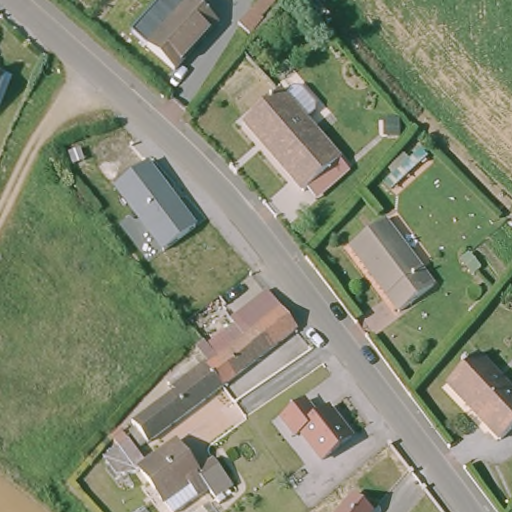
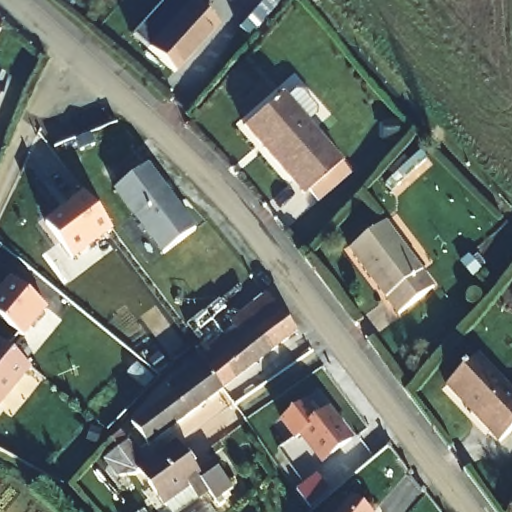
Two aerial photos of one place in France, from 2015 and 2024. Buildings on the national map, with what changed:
unchanged [(190,0),(217,24),(174,72),(146,48),(190,0)]
unchanged [(262,21),(249,36),(238,27),(261,0),(278,0),(261,21),(262,21)]
unchanged [(1,73),(5,75),(4,76),(0,86),(0,72),(1,73)]
unchanged [(312,187),(304,194),(243,125),(280,93),(340,162),(338,164),(342,170),(317,192),(312,187)]
unchanged [(385,185),(421,152),(426,159),(391,192),(385,185)]
unchanged [(115,192),(150,166),(195,228),(161,254),(115,192)]
new [(85,191),(113,229),(73,260),(44,221),(85,191)]
unchanged [(433,288),(398,314),(350,249),(385,223),(433,288)]
unchanged [(480,269),(471,275),(461,263),(470,257),(480,269)]
new [(10,276),(48,308),(24,337),(0,317),(0,289),(10,276)]
unchanged [(211,372),(200,357),(196,351),(203,345),(204,344),(207,348),(233,327),(230,323),(235,319),(266,295),(268,293),(297,331),(223,389),(211,372)]
new [(32,367),(0,405),(0,343),(32,367)]
unchanged [(211,372),(223,389),(147,446),(146,445),(140,449),(130,433),(135,429),(132,424),(172,393),(167,385),(200,357),(211,372)]
unchanged [(441,385),(472,357),(510,396),(512,394),(512,426),(495,442),(441,385)]
unchanged [(306,402),(318,416),(330,408),(353,440),(320,464),(300,438),(296,441),(281,423),(306,402)]
unchanged [(103,460),(117,450),(110,440),(120,432),(146,465),(176,444),(190,464),(173,476),(165,482),(160,476),(149,484),(140,473),(135,476),(115,476),(103,460)]
unchanged [(160,476),(165,482),(173,476),(190,464),(198,473),(214,462),(232,488),(215,501),(207,490),(178,512),(170,512),(149,484),(160,476)]
unchanged [(347,500),(362,512),(338,512),(347,500)]
new [(204,512),(199,512),(202,510),(204,512)]

